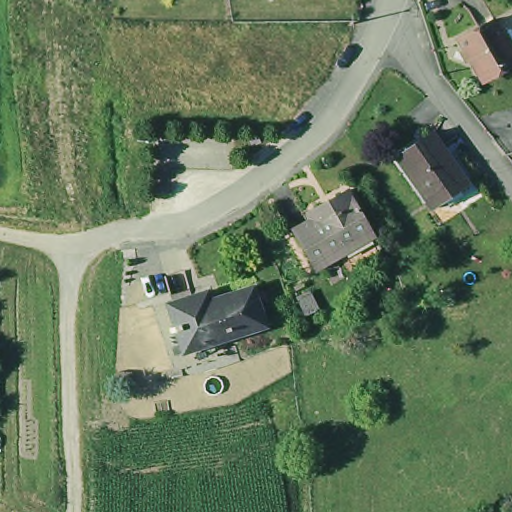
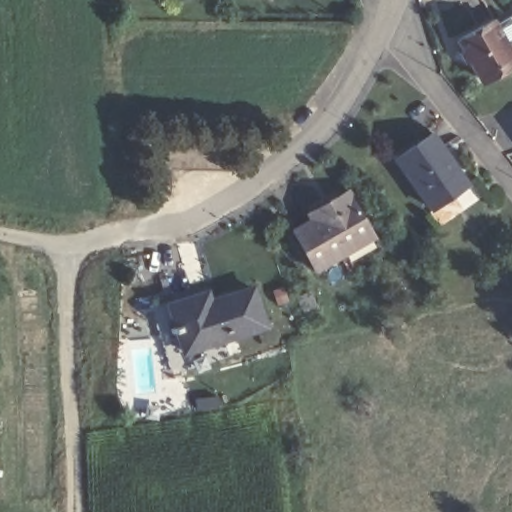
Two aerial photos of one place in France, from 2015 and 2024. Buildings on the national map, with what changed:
unchanged [(499,19),(512,42),(512,63),(486,78),(475,58),(477,56),(474,49),(471,50),(464,38),(499,19)]
unchanged [(440,131),(477,183),(442,207),(405,155),(440,131)]
unchanged [(384,237),(355,254),(357,258),(328,275),(305,235),(322,225),(319,218),(340,206),(359,194),(384,237)]
unchanged [(187,300),(212,292),(226,288),(227,288),(229,297),(272,283),(283,321),(239,335),(232,337),(202,347),(187,300)]
unchanged [(247,351),(243,352),(198,366),(190,364),(185,347),(170,300),(180,296),(185,294),(187,300),(202,347),(232,337),(234,342),(240,340),(243,339),(247,351)]

